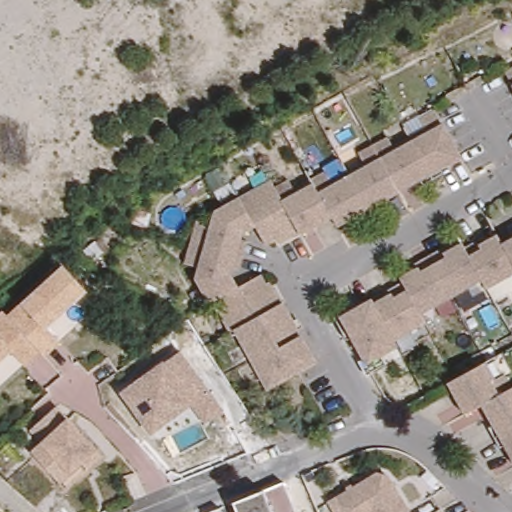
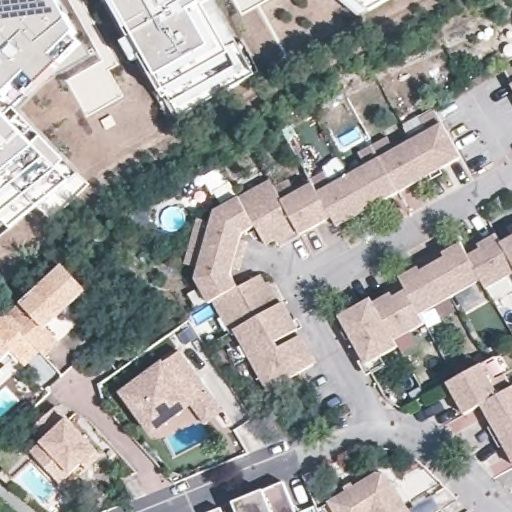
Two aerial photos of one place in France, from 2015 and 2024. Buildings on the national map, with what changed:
new [(78,34),(52,58),(58,65),(41,82),(29,73),(8,97),(0,91),(0,0),(59,0),(78,34)]
new [(254,74),(179,116),(165,89),(157,78),(113,0),(213,0),(254,74)]
new [(358,16),(340,0),(386,0),(358,16)]
unchanged [(500,67),(512,60),(512,89),(500,67)]
unchanged [(313,365),(268,391),(251,362),(233,331),(230,333),(213,302),(209,304),(195,280),(199,267),(184,264),(189,241),(196,218),(210,221),(212,214),(240,198),(269,181),(279,197),(296,188),(291,179),(305,171),(310,179),(322,173),(328,184),(347,173),(365,164),(359,153),(373,145),(385,137),(392,148),(409,137),(426,128),(421,119),(434,111),(461,158),(445,167),(442,169),(445,173),(432,179),(424,185),(420,181),(419,172),(420,181),(400,193),(382,203),(368,210),(355,217),(337,228),(331,218),(320,225),(301,236),(296,229),(287,234),(267,246),(256,226),(244,232),(242,239),(248,241),(244,255),(240,269),(234,268),(233,274),(240,287),(261,274),(274,296),(280,306),(285,303),(295,321),(299,320),(303,327),(295,332),(284,338),(286,341),(288,345),(298,339),(304,335),(319,362),(313,365)]
new [(33,144),(41,135),(65,161),(58,168),(67,178),(9,227),(0,217),(0,119),(6,115),(33,144)]
unchanged [(354,359),(360,355),(347,334),(336,318),(334,314),(344,308),(366,294),(369,298),(385,288),(385,286),(398,278),(395,273),(414,262),(413,260),(425,253),(437,245),(440,248),(456,238),(460,243),(472,236),(475,241),(493,230),(497,238),(512,229),(512,274),(486,290),(480,281),(450,299),(419,316),(423,323),(394,341),(374,351),(380,361),(360,371),(354,359)]
unchanged [(64,269),(84,291),(45,326),(59,341),(43,355),(39,351),(9,319),(64,269)]
unchanged [(39,351),(23,365),(9,350),(0,359),(0,318),(5,314),(9,319),(39,351)]
unchanged [(151,433),(122,394),(179,351),(208,390),(223,410),(205,424),(190,404),(168,420),(151,433)]
unchanged [(485,429),(490,427),(495,425),(489,425),(479,406),(462,415),(452,397),(445,383),(451,379),(480,364),(489,381),(500,376),(507,389),(512,386),(512,466),(504,449),(500,445),(495,448),(490,439),(485,429)]
unchanged [(88,470),(65,490),(60,484),(41,461),(33,451),(44,442),(33,429),(60,407),(71,420),(94,447),(103,458),(88,470)]
unchanged [(375,472),(383,476),(405,512),(332,512),(326,502),(375,472)]
unchanged [(264,491),(284,484),(296,512),(237,512),(234,504),(264,491)]
unchanged [(223,512),(214,512),(222,509),(223,512)]

